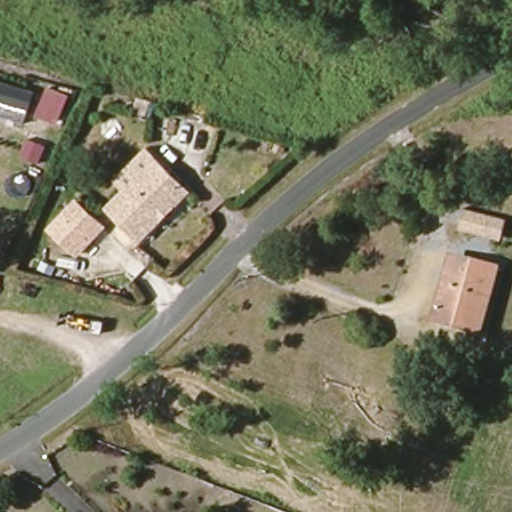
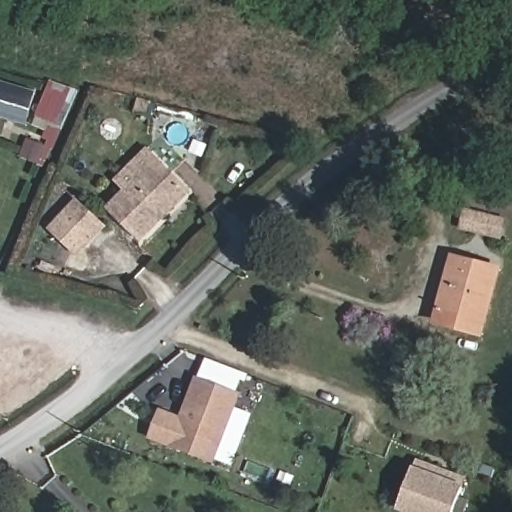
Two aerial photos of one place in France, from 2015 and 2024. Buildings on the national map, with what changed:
unchanged [(61,124),(33,114),(31,125),(0,114),(0,79),(3,80),(5,77),(32,84),(30,87),(45,92),(47,86),(72,95),(61,124)]
demolished [(206,136),(200,160),(166,151),(171,130),(206,136)]
unchanged [(139,240),(107,211),(128,189),(119,181),(150,149),(158,156),(189,186),(139,240)]
unchanged [(78,251),(53,227),(78,202),(103,226),(78,251)]
unchanged [(480,332),(437,320),(454,256),(497,266),(480,332)]
new [(214,464),(148,439),(160,408),(180,416),(195,377),(241,394),(214,464)]
new [(397,511),(415,460),(466,477),(454,512),(401,512),(397,511)]

